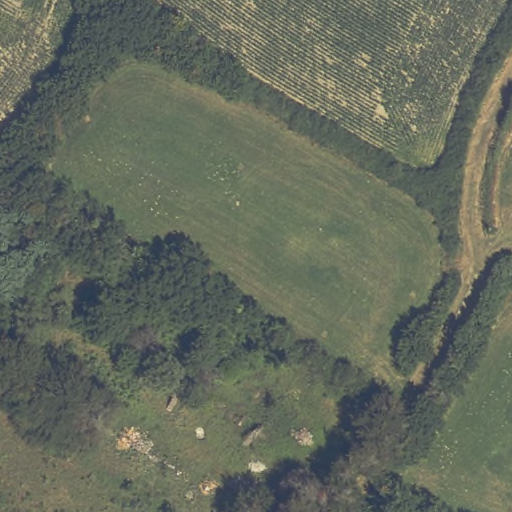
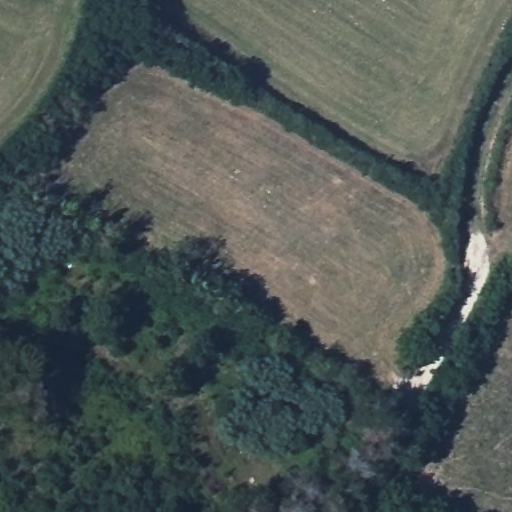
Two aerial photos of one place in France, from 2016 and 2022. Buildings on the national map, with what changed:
[]

